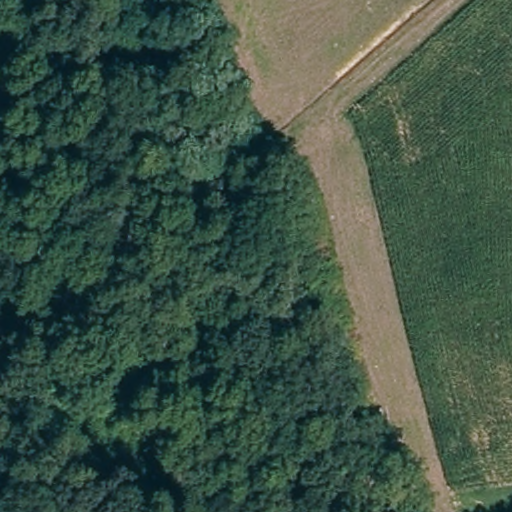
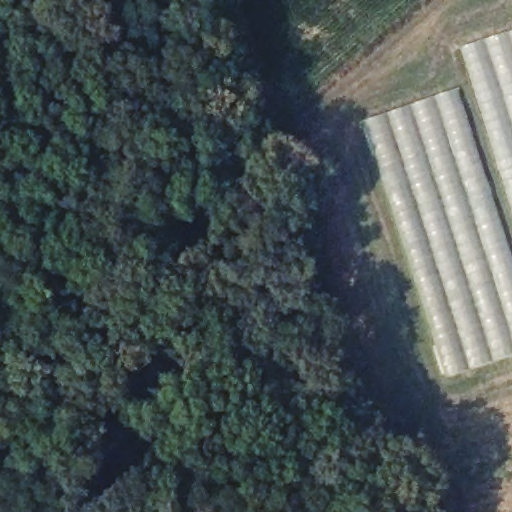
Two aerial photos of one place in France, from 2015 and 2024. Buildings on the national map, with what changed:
new [(461,47),(512,30),(512,210),(461,47)]
new [(458,89),(512,260),(512,356),(446,378),(363,120),(458,89)]

